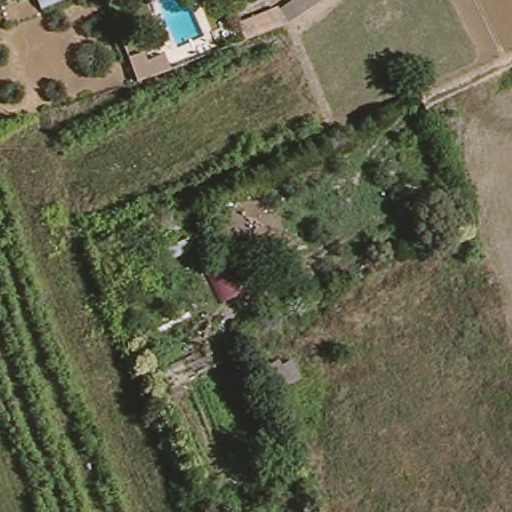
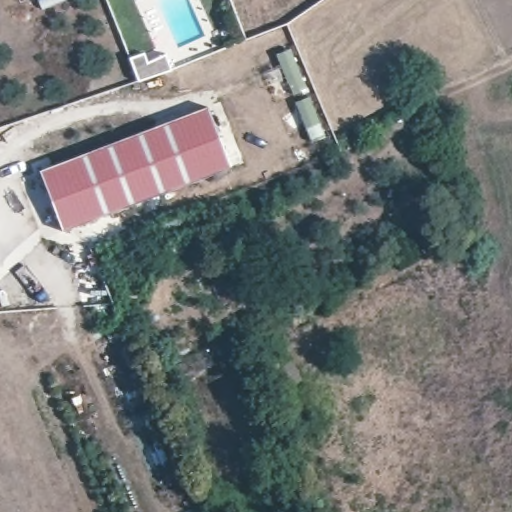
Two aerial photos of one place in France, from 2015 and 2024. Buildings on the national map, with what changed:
unchanged [(276,7),(288,0),(323,0),(287,30),(241,44),(231,22),(276,7)]
unchanged [(143,50),(147,60),(166,54),(172,68),(132,84),(124,56),(143,50)]
new [(231,166),(64,232),(40,170),(206,105),(231,166)]
unchanged [(278,402),(262,369),(281,360),(300,392),(278,402)]

